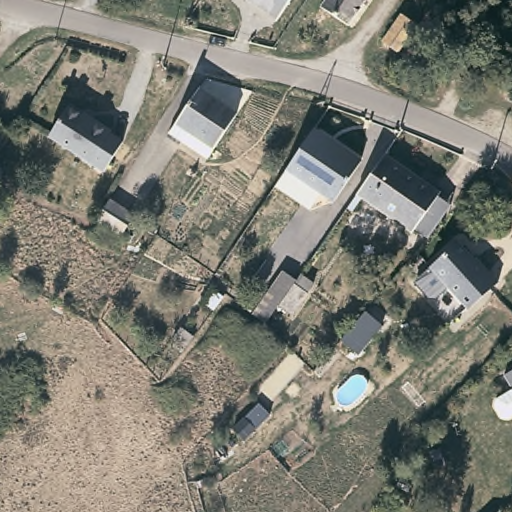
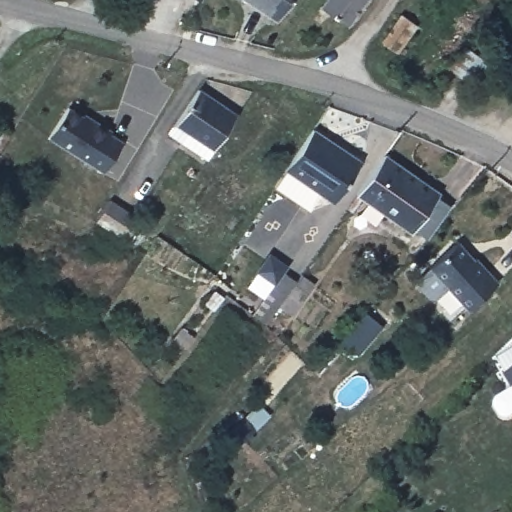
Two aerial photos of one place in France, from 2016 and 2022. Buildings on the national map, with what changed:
unchanged [(277,19),(247,0),(290,0),(277,19)]
unchanged [(344,31),(315,11),(323,0),(365,0),(344,31)]
unchanged [(384,40),(401,15),(416,25),(398,50),(384,40)]
unchanged [(475,47),(497,62),(483,84),(460,69),(475,47)]
unchanged [(235,113),(205,158),(167,133),(197,89),(235,113)]
unchanged [(102,171),(99,169),(63,147),(48,137),(66,108),(82,118),(90,123),(91,121),(108,132),(107,133),(118,140),(121,142),(102,171)]
unchanged [(9,133),(0,148),(0,127),(9,133)]
unchanged [(359,161),(333,200),(320,191),(308,208),(273,185),(311,128),(359,161)]
unchanged [(421,237),(407,228),(405,231),(351,193),(378,154),(433,192),(430,195),(444,204),(421,237)]
unchanged [(132,214),(119,236),(95,221),(108,200),(132,214)]
unchanged [(427,268),(457,241),(473,259),(475,258),(497,282),(478,299),(466,310),(427,268)]
unchanged [(277,307),(265,323),(252,314),(282,272),(295,281),(299,274),(312,283),(299,302),(289,315),(277,307)]
unchanged [(191,336),(182,349),(170,340),(180,327),(191,336)]
unchanged [(504,422),(499,420),(493,409),(494,405),(496,402),(510,393),(502,380),(512,374),(512,419),(507,422),(504,422)]

